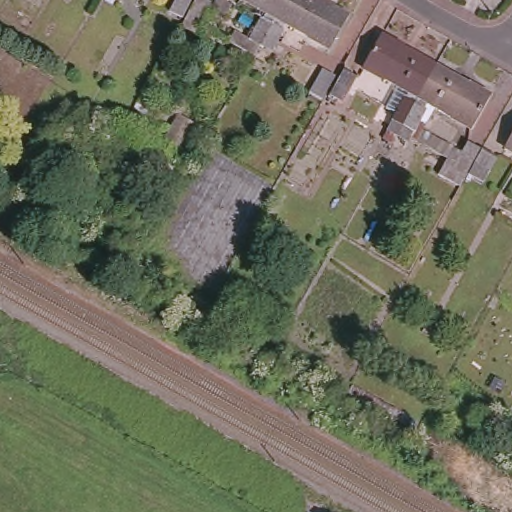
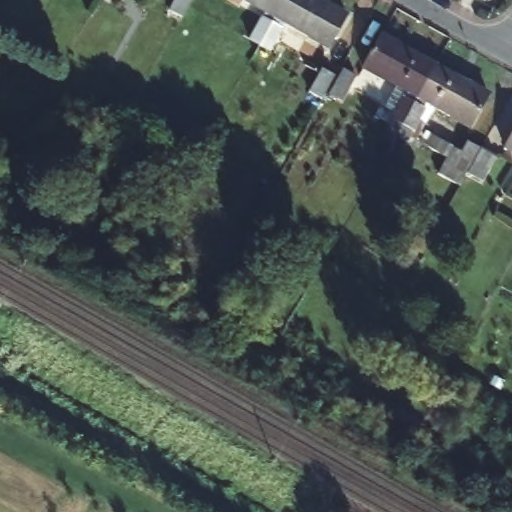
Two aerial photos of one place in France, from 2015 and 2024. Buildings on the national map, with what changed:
unchanged [(192,4),(185,18),(172,11),(179,0),(195,0),(192,4)]
unchanged [(268,53),(257,46),(252,53),(242,47),(255,23),(260,26),(267,15),(241,0),(282,0),(272,18),(262,35),(274,42),(268,53)]
unchanged [(344,16),(325,48),(272,18),(282,0),(316,0),(344,16)]
unchanged [(390,122),(403,98),(408,101),(415,91),(365,63),(385,32),(437,61),(398,127),(390,122)]
unchanged [(398,127),(437,61),(491,91),(472,123),(425,97),(419,107),(424,110),(410,134),(398,127)]
unchanged [(337,76),(323,99),(312,92),(325,68),(337,76)]
unchanged [(502,143),(512,125),(512,148),(502,143)]

